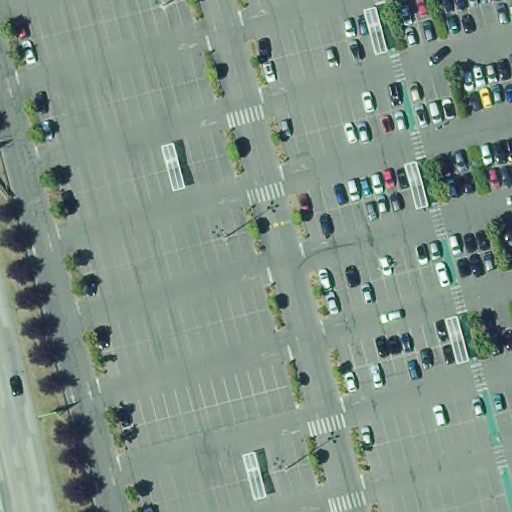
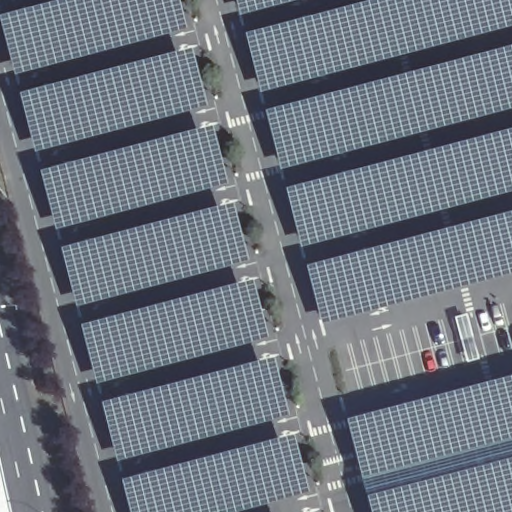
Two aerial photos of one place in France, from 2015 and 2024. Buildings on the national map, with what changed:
new [(179,0),(187,25),(19,79),(1,23),(73,0),(179,0)]
new [(237,0),(303,0),(242,16),(237,0)]
new [(512,0),(512,27),(262,93),(247,36),(383,0),(512,0)]
new [(267,113),(512,48),(512,110),(282,170),(267,113)]
new [(192,50),(207,107),(36,153),(21,95),(192,50)]
new [(210,123),(228,180),(60,234),(42,177),(210,123)]
new [(287,190),(512,131),(512,192),(302,248),(287,190)]
new [(231,201),(249,257),(80,311),(62,255),(231,201)]
new [(512,275),(323,325),(307,267),(512,214),(512,275)]
new [(251,278),(269,334),(100,388),(82,332),(251,278)]
new [(272,356),(290,413),(120,465),(103,409),(272,356)]
new [(292,433),(310,489),(239,512),(132,512),(123,486),(292,433)]

